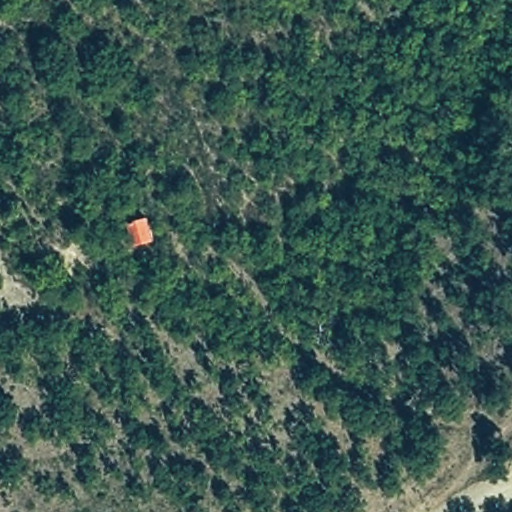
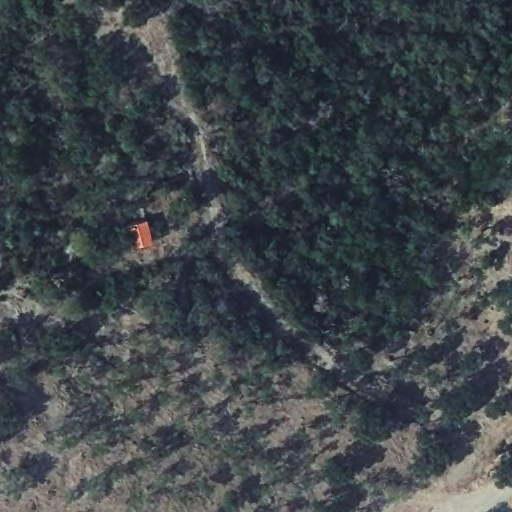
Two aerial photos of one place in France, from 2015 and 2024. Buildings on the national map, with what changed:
unchanged [(154,241),(131,247),(123,219),(146,214),(154,241)]

